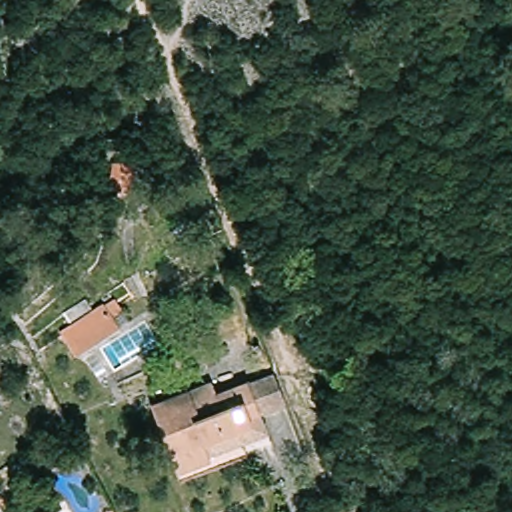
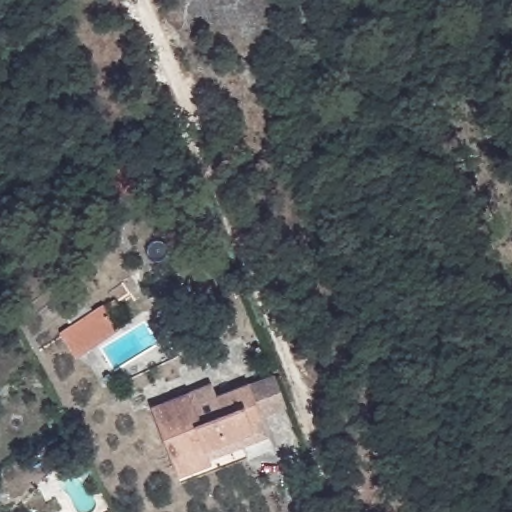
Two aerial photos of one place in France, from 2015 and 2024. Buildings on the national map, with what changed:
unchanged [(117,312),(106,319),(113,330),(73,357),(60,337),(111,303),(117,312)]
unchanged [(182,478),(154,410),(191,395),(196,408),(250,386),(263,419),(236,429),(245,452),(182,478)]

